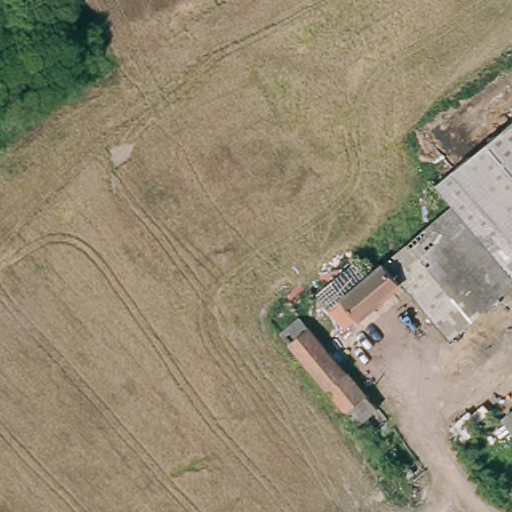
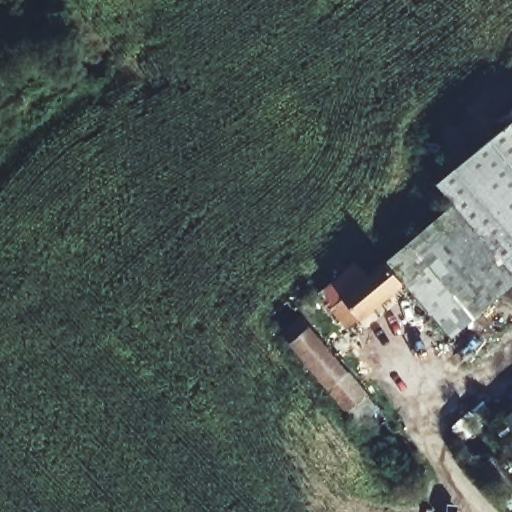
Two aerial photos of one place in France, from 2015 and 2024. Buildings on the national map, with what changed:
unchanged [(448,197),(435,181),(512,116),(512,274),(448,197)]
unchanged [(448,197),(512,274),(512,283),(452,333),(385,251),(448,197)]
unchanged [(385,257),(403,280),(343,328),(322,301),(338,287),(326,272),(349,255),(365,273),(385,257)]
unchanged [(277,331),(296,315),(305,325),(370,401),(352,416),(277,331)]
unchanged [(505,420),(512,414),(512,429),(505,420)]

